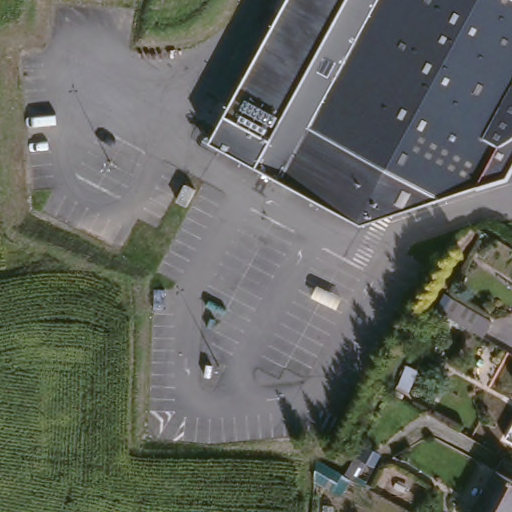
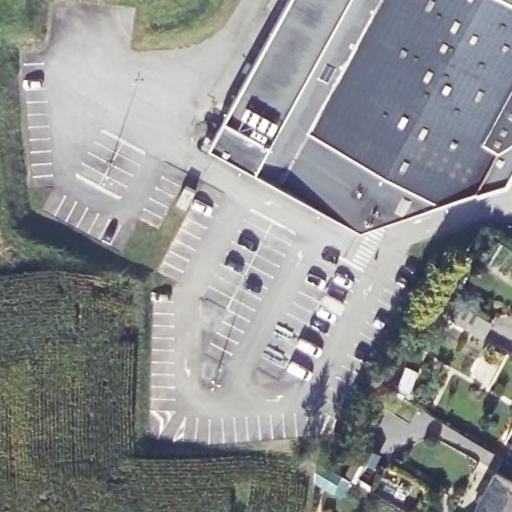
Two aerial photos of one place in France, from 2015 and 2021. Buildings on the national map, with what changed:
unchanged [(290,0),(512,0),(512,179),(498,204),(360,231),(209,148),(290,0)]
unchanged [(181,190),(189,195),(180,211),(172,207),(171,206),(180,190),(181,190)]
unchanged [(457,319),(498,344),(490,359),(484,356),(447,336),(457,319)]
unchanged [(512,486),(512,512),(473,512),(493,476),(512,486)]

